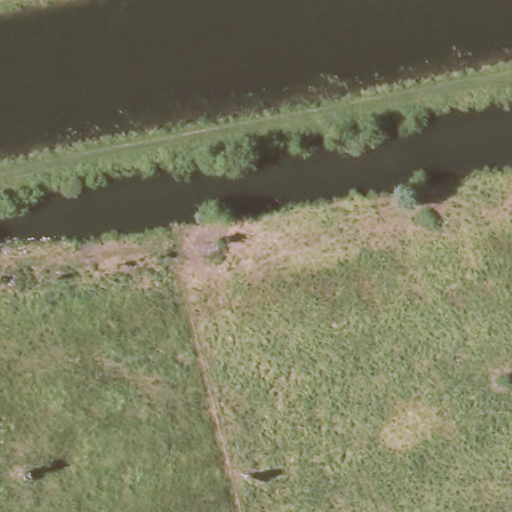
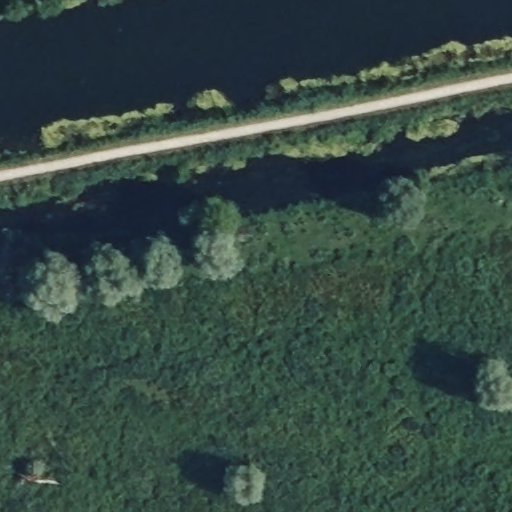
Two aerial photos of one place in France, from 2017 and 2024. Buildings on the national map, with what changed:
[]

